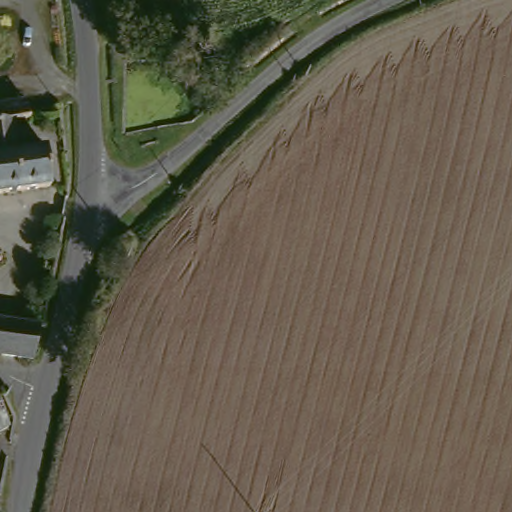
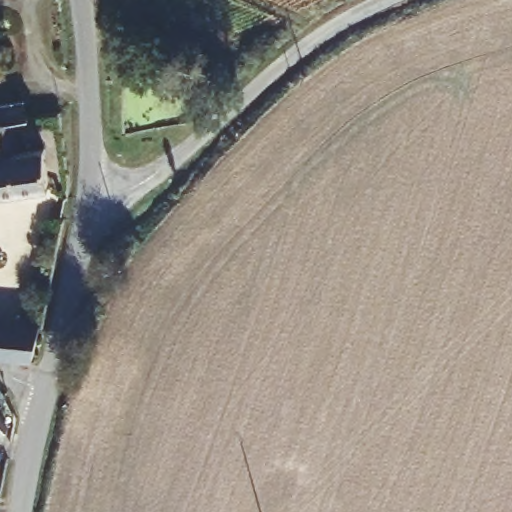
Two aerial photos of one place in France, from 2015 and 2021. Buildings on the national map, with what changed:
unchanged [(52,143),(58,184),(0,192),(0,107),(34,100),(36,115),(21,118),(25,146),(52,143)]
unchanged [(33,322),(25,346),(0,343),(0,319),(33,322)]
unchanged [(12,416),(10,431),(0,436),(0,395),(12,416)]

